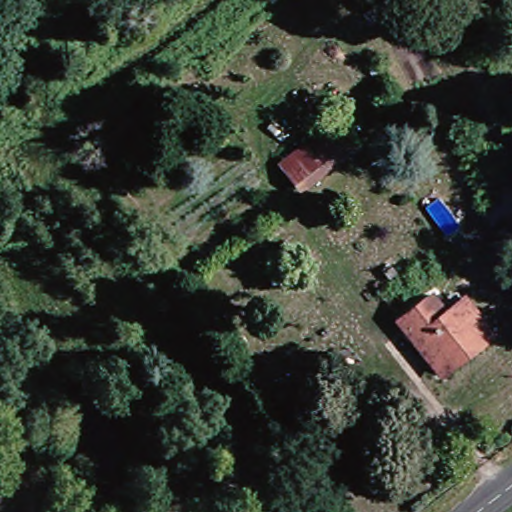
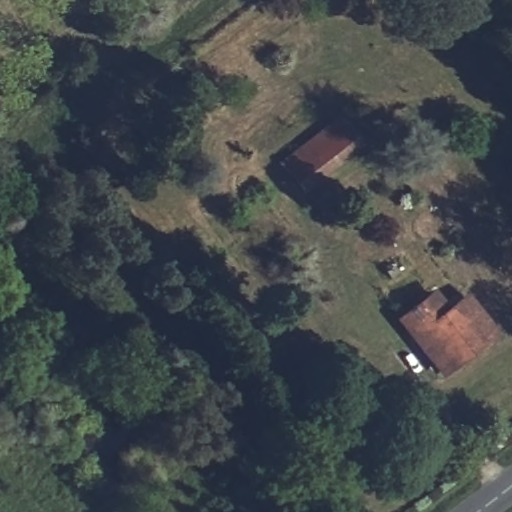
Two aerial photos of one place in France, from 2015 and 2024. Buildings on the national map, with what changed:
unchanged [(273,162),(331,122),(351,149),(296,194),(273,162)]
unchanged [(433,292),(471,343),(414,379),(377,333),(433,292)]

